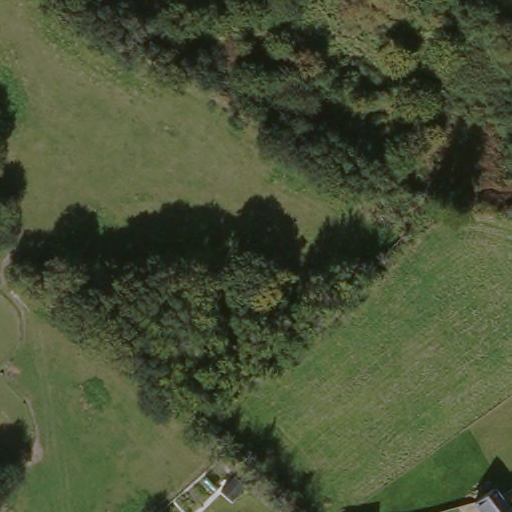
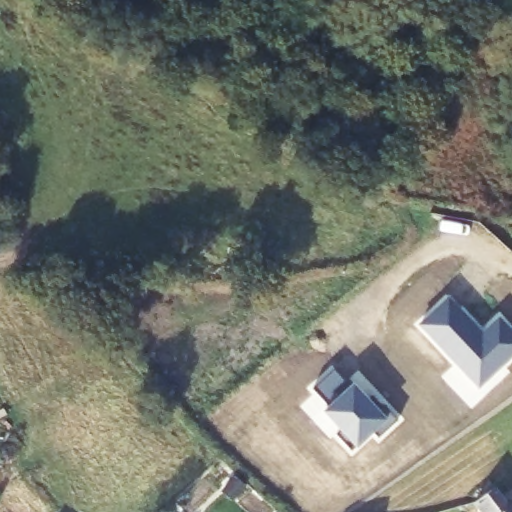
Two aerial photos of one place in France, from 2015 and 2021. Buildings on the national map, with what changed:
new [(481,328),(497,313),(512,328),(512,357),(478,387),(416,324),(446,293),(481,328)]
new [(334,367),(351,381),(364,395),(370,394),(379,404),(381,403),(396,419),(378,435),(374,430),(357,447),(322,412),(329,403),(313,387),(334,367)]
unchanged [(496,488),(500,494),(512,485),(512,512),(477,512),(473,507),(496,488)]

